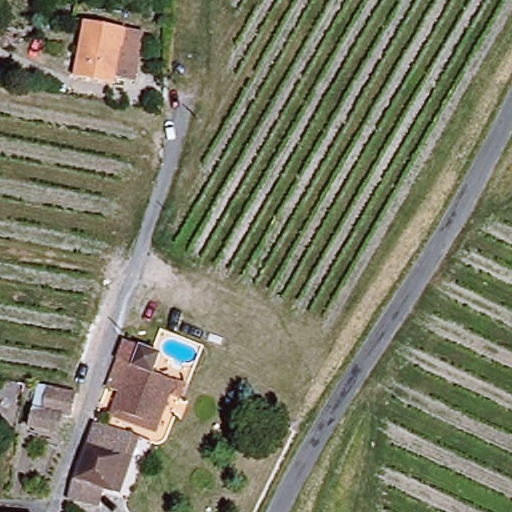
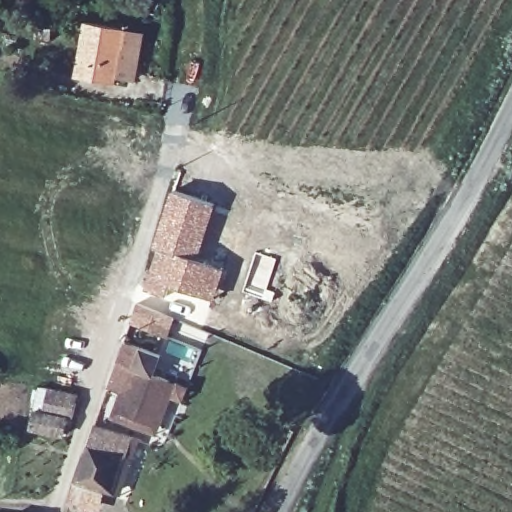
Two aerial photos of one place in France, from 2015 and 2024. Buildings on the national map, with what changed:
unchanged [(125,81),(107,78),(108,85),(67,76),(76,22),(117,29),(134,31),(125,81)]
new [(173,188),(217,202),(199,257),(154,246),(173,188)]
new [(154,246),(199,257),(226,267),(215,301),(174,289),(171,296),(142,287),(154,246)]
new [(138,301),(176,315),(169,338),(130,323),(138,301)]
unchanged [(163,353),(155,371),(170,378),(151,422),(119,408),(130,383),(112,374),(129,338),(163,353)]
unchanged [(154,432),(110,412),(121,388),(108,382),(112,374),(130,383),(119,408),(151,422),(170,378),(172,379),(188,386),(182,400),(171,394),(155,429),(154,432)]
unchanged [(70,418),(62,417),(60,432),(29,428),(32,410),(41,412),(45,386),(75,392),(70,418)]
unchanged [(112,493),(99,489),(93,507),(67,498),(96,421),(134,435),(112,493)]

